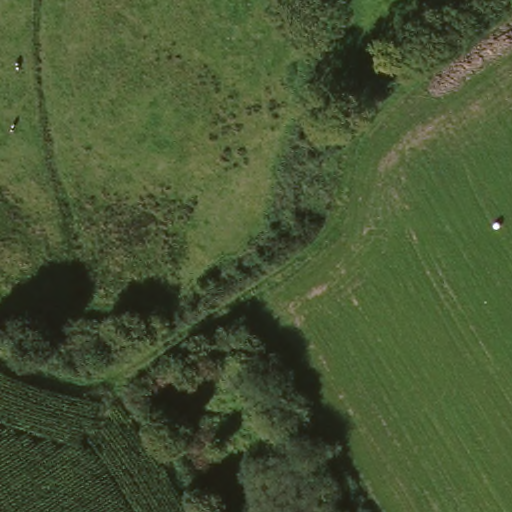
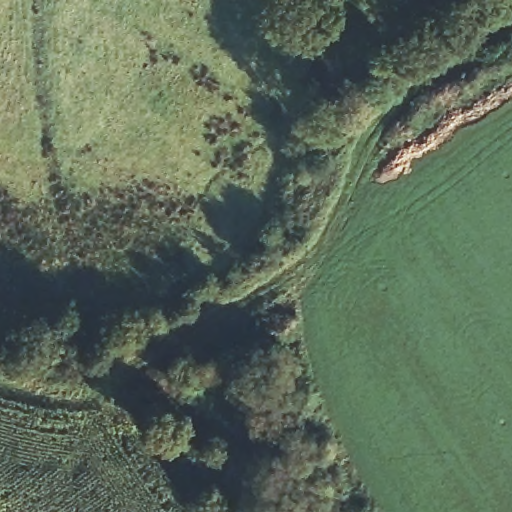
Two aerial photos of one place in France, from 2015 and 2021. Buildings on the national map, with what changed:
[]

